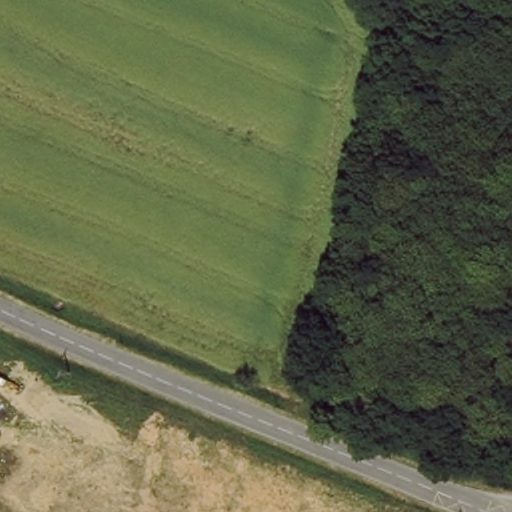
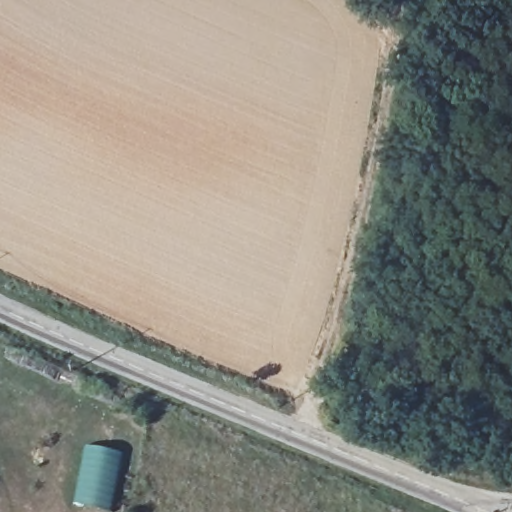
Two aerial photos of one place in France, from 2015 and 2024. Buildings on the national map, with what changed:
new [(115,512),(110,512),(72,504),(85,447),(127,457),(115,512)]

